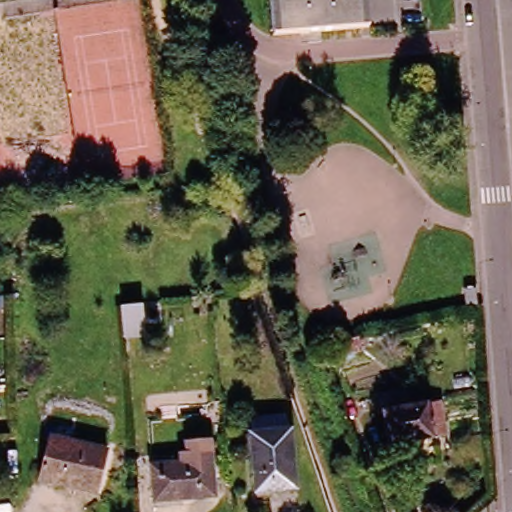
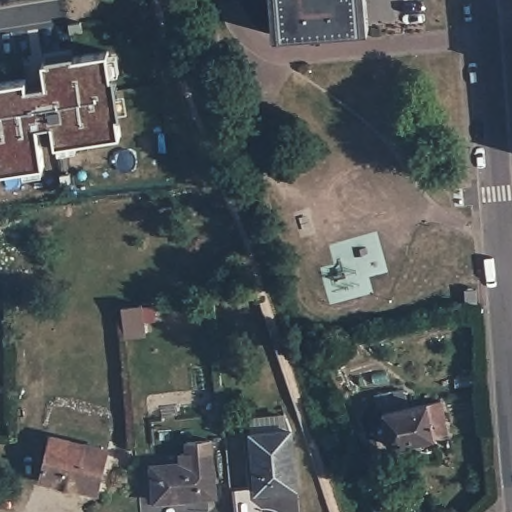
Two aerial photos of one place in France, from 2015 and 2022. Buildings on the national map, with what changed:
unchanged [(362,25),(320,29),(320,39),(300,40),(300,30),(278,32),(275,0),(361,0),(362,25)]
new [(70,24),(81,22),(83,32),(70,34),(70,24)]
new [(53,69),(52,65),(77,61),(77,65),(112,60),(115,84),(119,83),(125,125),(121,126),(124,144),(61,153),(49,69),(53,69)]
new [(112,61),(120,60),(122,77),(115,78),(112,61)]
new [(58,132),(44,134),(50,174),(0,181),(0,90),(32,85),(33,94),(52,91),(58,132)]
new [(63,153),(80,150),(82,158),(65,160),(63,153)]
new [(28,177),(46,174),(47,182),(30,184),(28,177)]
new [(62,177),(72,175),(74,188),(65,189),(62,177)]
unchanged [(201,191),(223,189),(231,214),(226,214),(206,216),(201,191)]
unchanged [(145,302),(150,333),(125,339),(120,302),(145,302)]
new [(371,335),(379,359),(345,370),(337,345),(371,335)]
unchanged [(440,433),(382,443),(377,409),(435,399),(440,433)]
unchanged [(286,427),(291,482),(250,486),(246,429),(286,427)]
unchanged [(91,487),(57,478),(55,483),(35,478),(45,434),(100,447),(91,487)]
unchanged [(181,461),(180,451),(186,451),(185,440),(210,438),(211,458),(215,494),(155,498),(151,463),(181,461)]

